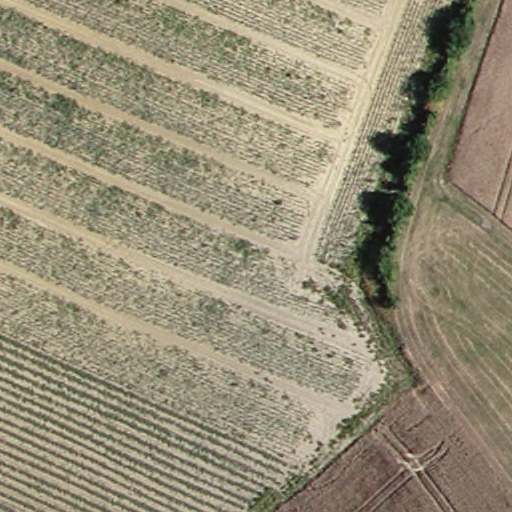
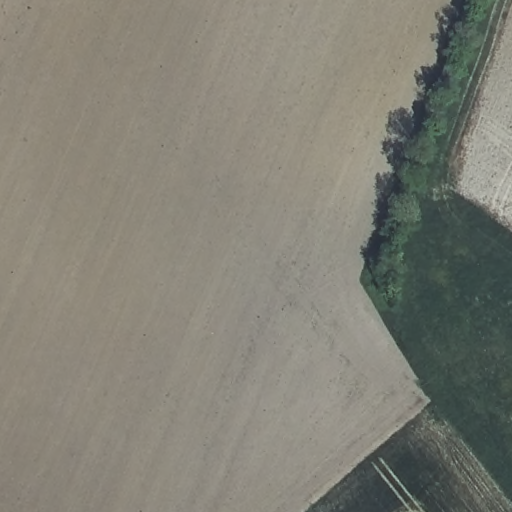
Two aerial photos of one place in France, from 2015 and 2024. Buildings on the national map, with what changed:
[]

